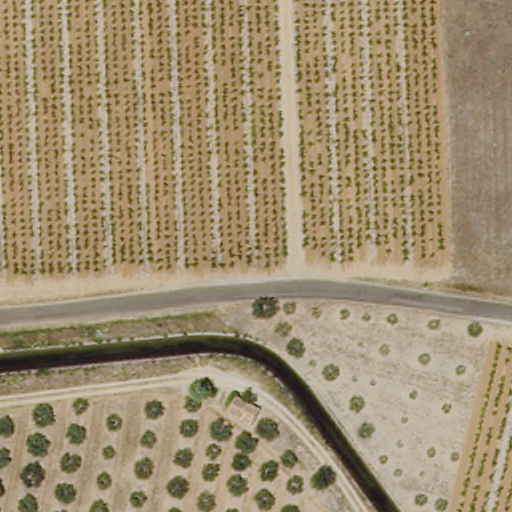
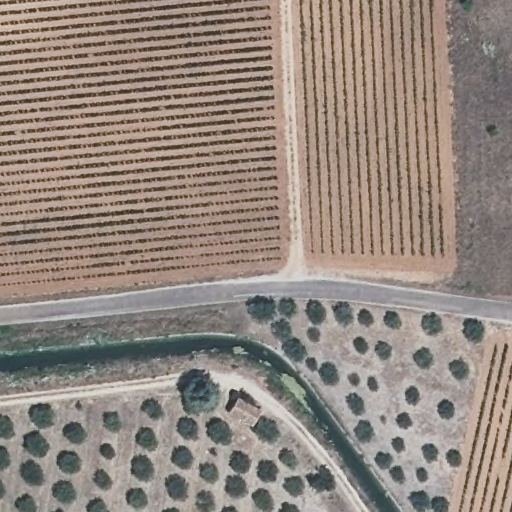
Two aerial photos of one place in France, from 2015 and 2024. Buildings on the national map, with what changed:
unchanged [(232,394),(254,408),(246,422),(224,407),(232,394)]

